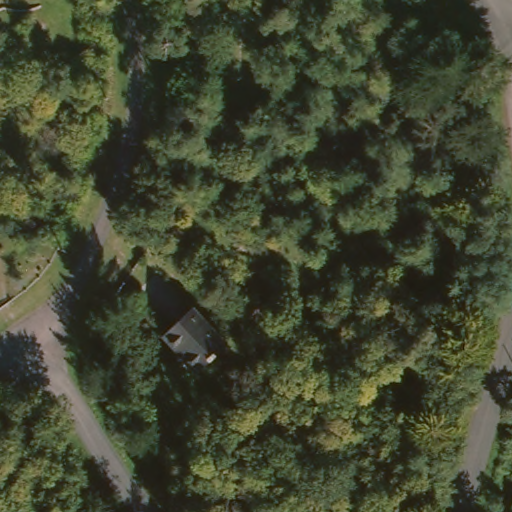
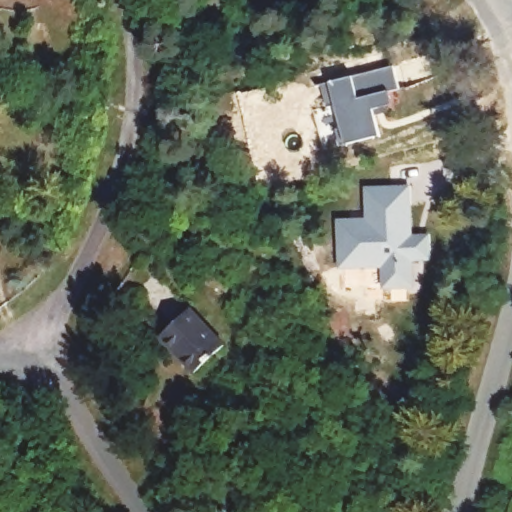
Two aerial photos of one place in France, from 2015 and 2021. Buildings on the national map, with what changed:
new [(391,66),(396,89),(386,91),(389,104),(370,109),(376,135),(335,144),(331,128),(337,126),(332,104),(324,105),(319,82),(391,66)]
new [(431,259),(409,259),(409,285),(380,285),(380,264),(337,264),(337,218),(366,218),(366,187),(381,187),(409,187),(409,204),(409,236),(431,237),(431,259)]
unchanged [(219,346),(189,372),(155,333),(185,308),(219,346)]

